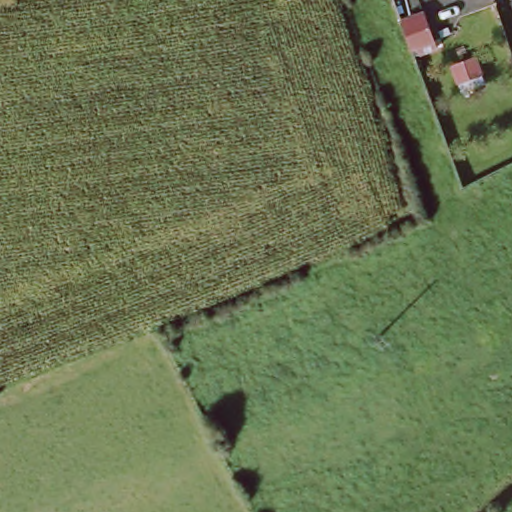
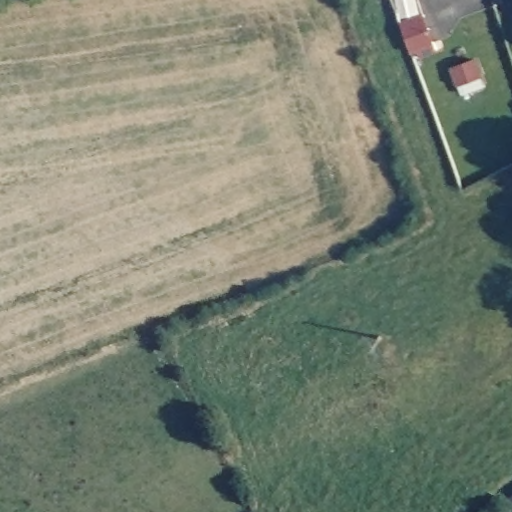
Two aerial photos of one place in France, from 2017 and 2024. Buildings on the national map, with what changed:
unchanged [(401,24),(423,15),(437,50),(420,57),(417,50),(411,52),(401,25),(401,24)]

